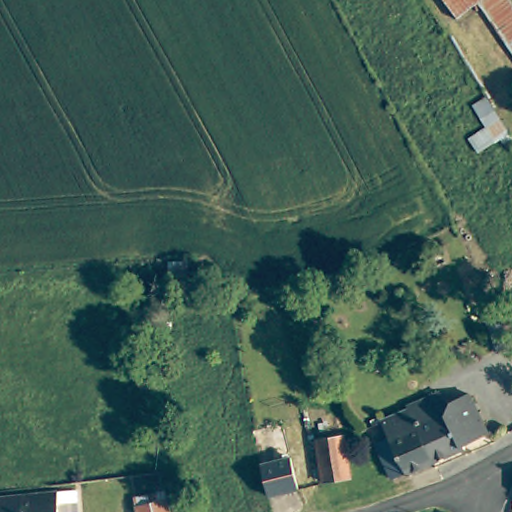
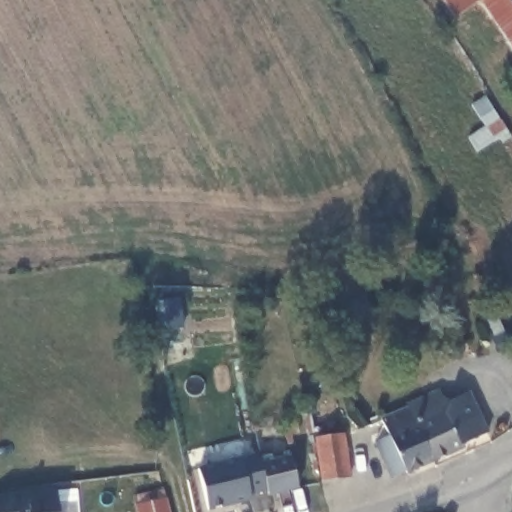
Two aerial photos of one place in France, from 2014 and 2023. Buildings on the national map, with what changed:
unchanged [(512,2),(512,54),(477,4),(460,16),(446,0),(511,0),(512,2)]
unchanged [(441,394),(451,398),(470,391),(488,433),(463,444),(465,447),(435,461),(412,407),(441,394)]
unchanged [(394,436),(387,418),(401,412),(412,407),(435,461),(410,472),(408,470),(395,476),(381,442),(394,436)]
unchanged [(348,433),(353,477),(327,482),(321,437),(348,433)]
new [(266,493),(251,497),(252,502),(207,512),(197,470),(239,460),(258,453),(261,465),(266,493)]
unchanged [(291,455),(298,492),(267,498),(261,465),(291,455)]
unchanged [(81,490),(82,512),(0,512),(0,499),(37,496),(81,490)]
unchanged [(169,512),(138,512),(136,502),(166,497),(169,512)]

